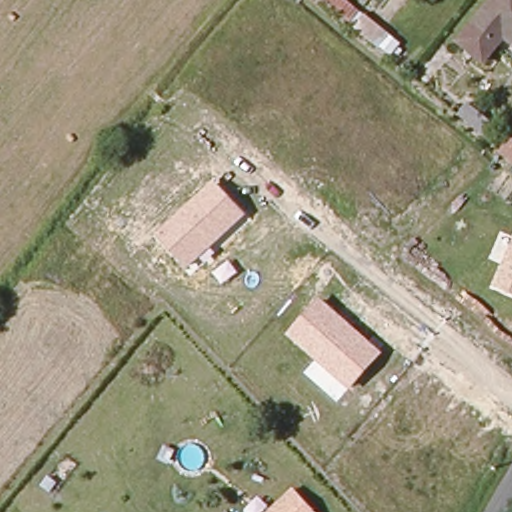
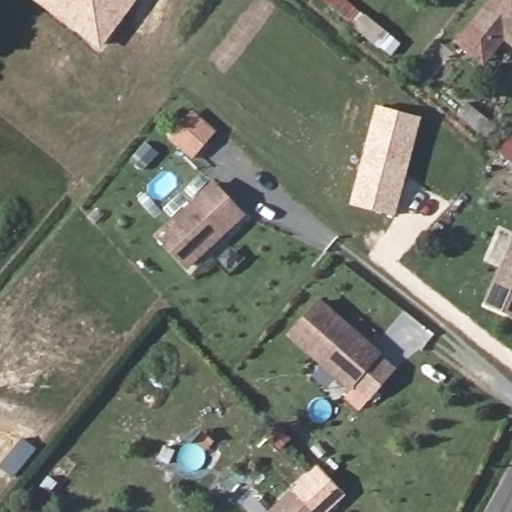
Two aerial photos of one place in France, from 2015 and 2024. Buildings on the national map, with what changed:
new [(138,0),(100,51),(33,0),(138,0)]
new [(389,54),(323,0),(346,0),(400,40),(389,54)]
unchanged [(484,69),(458,50),(499,0),(512,0),(512,34),(511,34),(484,69)]
new [(395,214),(351,205),(376,106),(421,117),(395,214)]
new [(167,139),(192,110),(217,131),(192,161),(167,139)]
unchanged [(511,134),(512,134),(512,167),(496,153),(511,134)]
unchanged [(186,267),(158,237),(213,186),(241,216),(186,267)]
unchanged [(512,295),(493,288),(512,243),(512,295)]
unchanged [(349,391),(287,335),(319,298),(382,353),(349,391)]
unchanged [(314,512),(268,512),(292,489),(314,512)]

